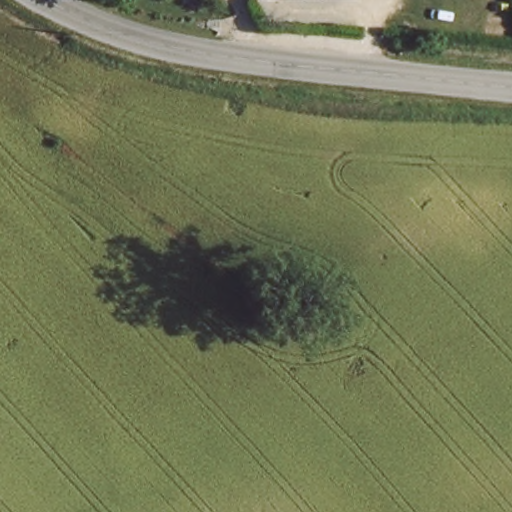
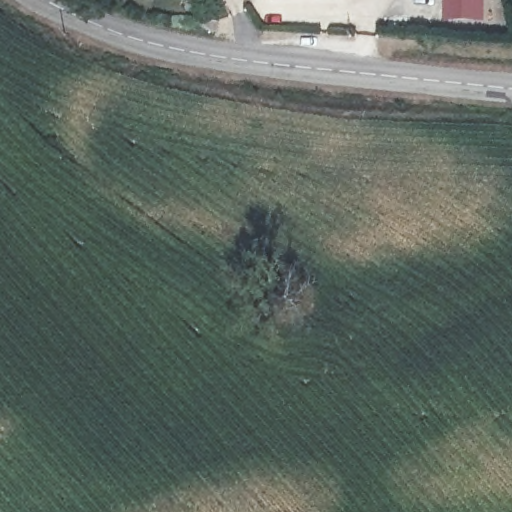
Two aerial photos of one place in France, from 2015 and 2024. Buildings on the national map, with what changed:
new [(484,22),(442,22),(441,0),(484,0),(484,22)]

